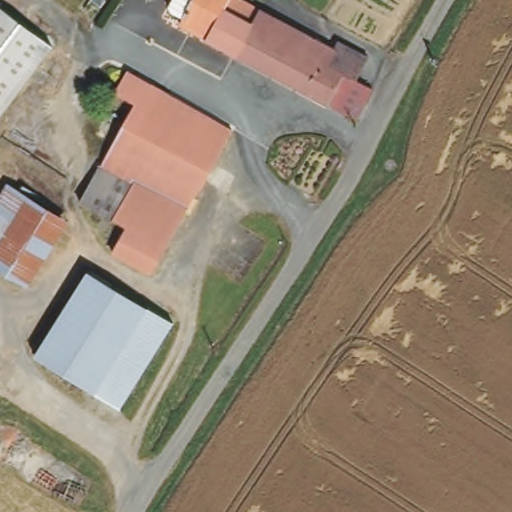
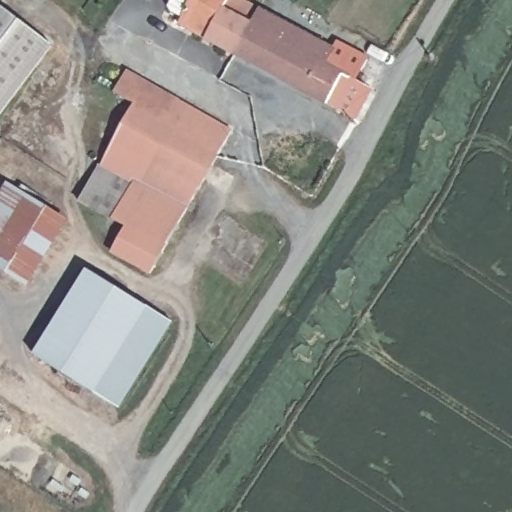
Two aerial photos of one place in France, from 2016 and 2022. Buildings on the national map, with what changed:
unchanged [(192,0),(246,0),(259,7),(335,48),(337,41),(367,57),(354,80),(363,86),(370,90),(355,118),(351,116),(237,54),(179,22),(192,0)]
unchanged [(58,42),(0,118),(0,5),(58,42)]
unchanged [(117,144),(95,132),(128,72),(153,87),(238,132),(203,192),(154,273),(116,254),(130,230),(82,202),(117,144)]
unchanged [(7,187),(63,223),(24,285),(0,268),(0,197),(7,187)]
unchanged [(32,356),(87,271),(128,296),(72,381),(32,356)]
unchanged [(128,296),(172,322),(116,408),(72,381),(128,296)]

